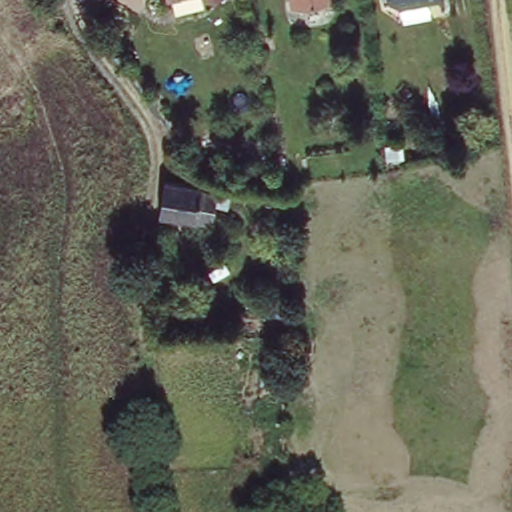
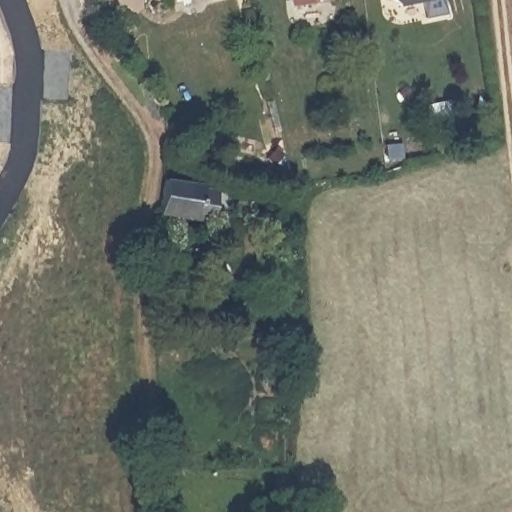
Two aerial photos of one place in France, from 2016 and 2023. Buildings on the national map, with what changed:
unchanged [(330,6),(295,11),(294,0),(329,0),(330,6)]
unchanged [(447,1),(407,11),(395,4),(394,0),(447,0),(447,1)]
unchanged [(213,225),(157,217),(164,181),(203,188),(204,192),(218,195),(213,225)]

